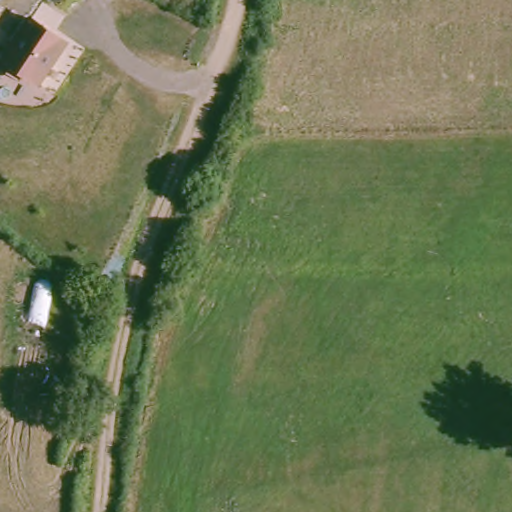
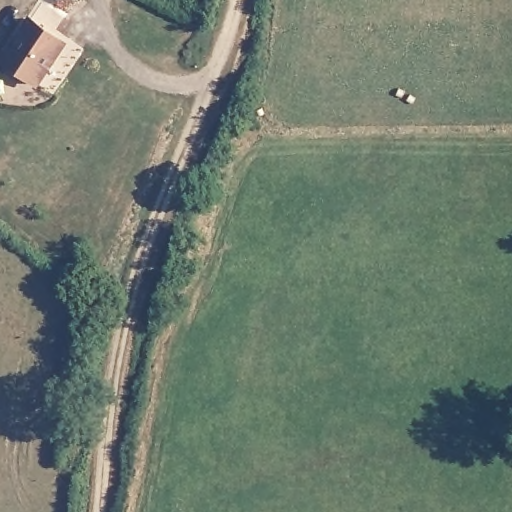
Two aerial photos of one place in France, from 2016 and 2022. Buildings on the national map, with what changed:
unchanged [(35,86),(18,73),(14,78),(0,69),(0,62),(29,21),(41,4),(63,19),(51,36),(63,45),(35,86)]

